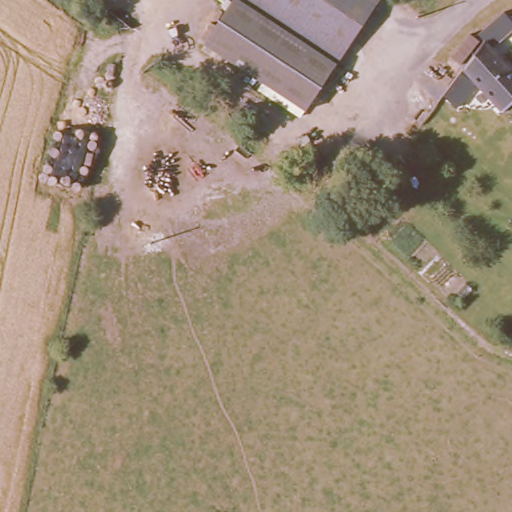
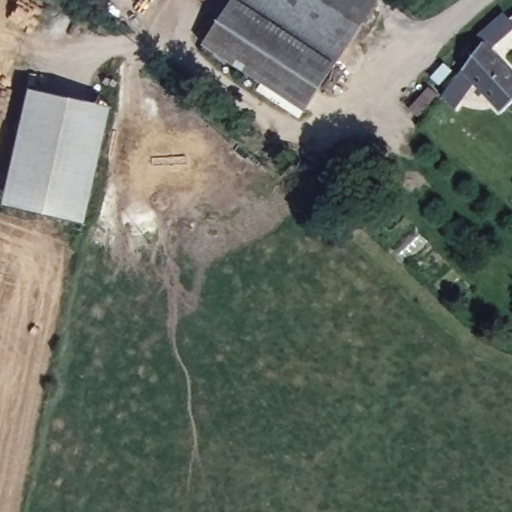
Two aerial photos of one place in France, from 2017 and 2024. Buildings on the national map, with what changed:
unchanged [(256,89),(261,82),(203,45),(231,0),(235,0),(334,63),(304,110),(300,117),(256,89)]
unchanged [(235,0),(364,0),(373,5),(335,63),(334,63),(235,0)]
unchanged [(364,0),(377,0),(373,5),(364,0)]
unchanged [(478,47),(472,38),(491,21),(498,15),(505,22),(512,16),(512,30),(484,53),(512,87),(512,90),(497,102),(488,108),(464,80),(439,101),(429,89),(453,68),(478,47)]
new [(112,107),(85,225),(2,206),(29,88),(112,107)]

